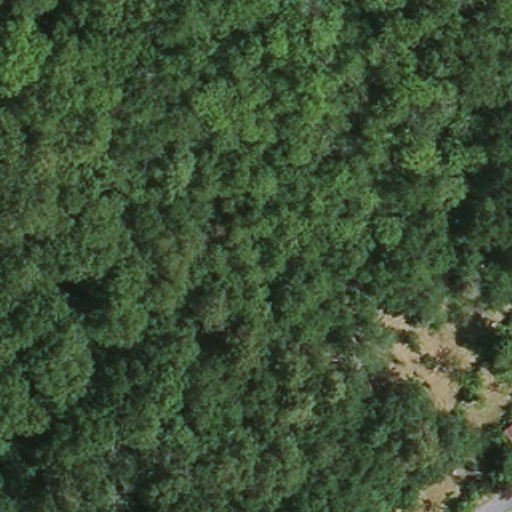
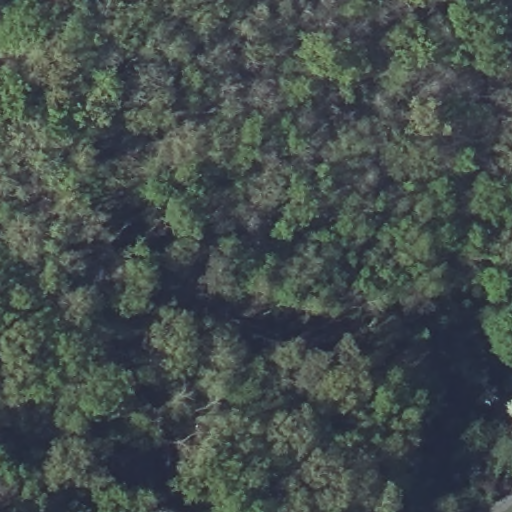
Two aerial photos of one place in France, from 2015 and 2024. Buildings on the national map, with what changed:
unchanged [(512,425),(512,439),(505,432),(512,425)]

